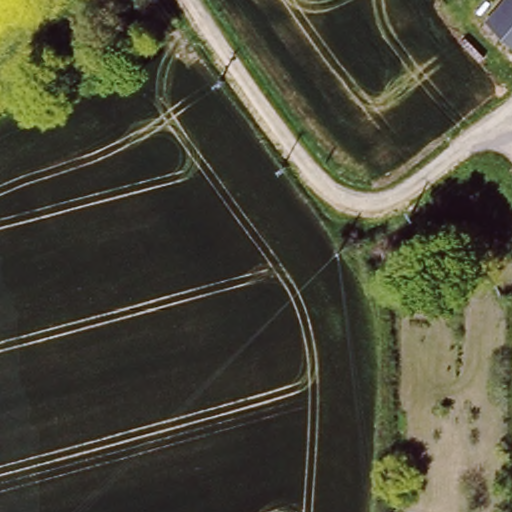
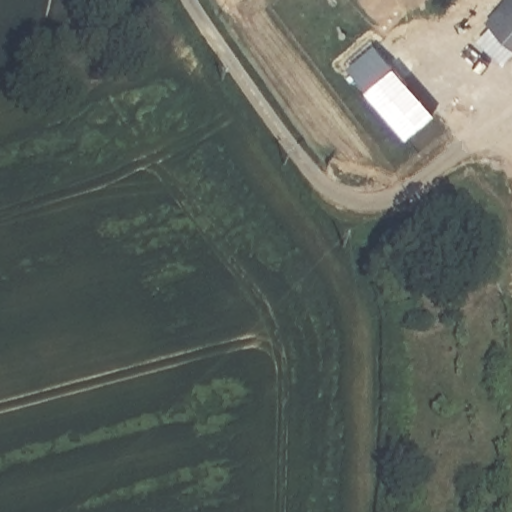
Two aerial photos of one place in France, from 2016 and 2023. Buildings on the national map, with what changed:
unchanged [(506,0),(512,0),(512,52),(509,56),(479,30),(506,0)]
new [(406,136),(349,66),(374,44),(434,112),(406,136)]

